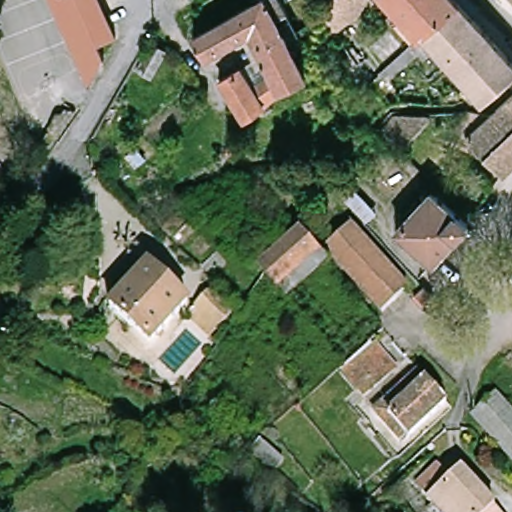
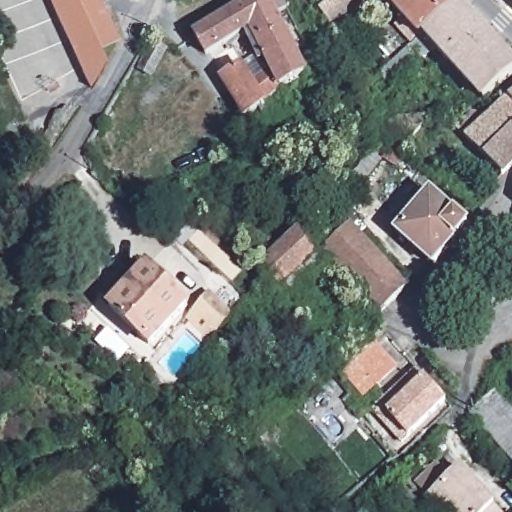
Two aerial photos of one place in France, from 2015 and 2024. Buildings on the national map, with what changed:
unchanged [(53,0),(79,0),(98,44),(105,56),(90,81),(53,0)]
unchanged [(100,0),(116,35),(98,44),(79,0),(100,0)]
unchanged [(247,30),(206,55),(193,35),(251,1),(250,0),(278,0),(305,46),(293,54),(305,75),(301,78),(284,90),(268,104),(274,114),(266,119),(259,109),(245,117),(222,79),(248,61),(258,55),(251,39),(247,30)]
unchanged [(336,36),(331,30),(321,17),(319,14),(334,0),(369,0),(372,4),(336,36)]
unchanged [(400,17),(385,0),(455,0),(458,3),(419,38),(400,17)]
unchanged [(419,38),(458,3),(512,62),(512,75),(483,101),(476,102),(469,105),(459,94),(468,85),(434,49),(423,59),(419,54),(389,80),(395,90),(404,105),(392,104),(388,108),(375,91),(369,83),(359,69),(346,50),(356,44),(375,77),(419,38)]
unchanged [(451,84),(464,107),(462,107),(449,108),(436,107),(433,107),(430,106),(429,95),(451,84)]
unchanged [(503,170),(501,174),(455,126),(470,112),(485,112),(489,115),(512,95),(512,161),(503,170)]
unchanged [(378,136),(393,119),(429,117),(398,153),(378,136)]
unchanged [(228,145),(236,145),(236,154),(228,154),(228,145)]
unchanged [(226,159),(228,166),(219,170),(217,162),(226,159)]
unchanged [(429,193),(469,225),(433,266),(396,234),(429,193)]
unchanged [(351,215),(411,290),(384,312),(328,245),(336,237),(331,231),(351,215)]
unchanged [(279,289),(266,276),(259,268),(299,229),(316,244),(320,250),(286,282),(279,289)]
unchanged [(145,266),(187,306),(148,345),(108,305),(145,266)]
unchanged [(424,315),(412,304),(422,293),(434,305),(424,315)]
unchanged [(193,308),(210,295),(231,320),(215,335),(193,308)]
unchanged [(374,335),(387,350),(397,363),(384,375),(361,396),(336,370),(351,356),(374,335)]
unchanged [(428,366),(456,398),(440,415),(435,420),(432,422),(430,424),(427,427),(415,438),(385,407),(428,366)]
unchanged [(491,392),(512,416),(512,457),(509,460),(467,414),(491,392)]
unchanged [(442,461),(455,472),(462,465),(509,512),(442,512),(428,498),(431,496),(418,484),(435,467),(441,460),(442,461)]

